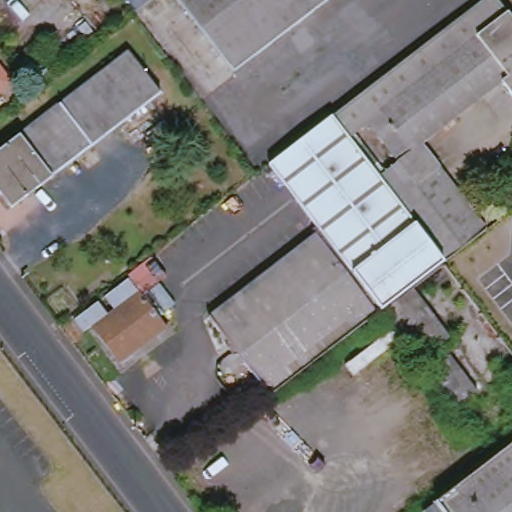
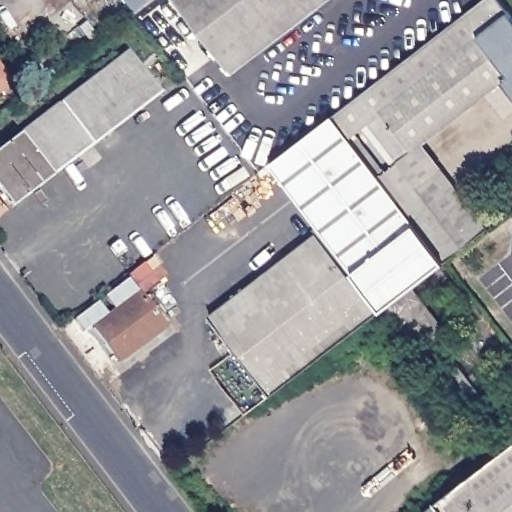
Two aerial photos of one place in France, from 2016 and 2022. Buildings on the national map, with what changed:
unchanged [(234,71),(179,0),(326,0),(234,71)]
unchanged [(332,114),(481,0),(499,0),(512,17),(512,94),(501,80),(397,159),(367,122),(350,136),(332,114)]
unchanged [(0,150),(130,50),(161,91),(12,206),(0,191),(0,150)]
unchanged [(0,96),(0,68),(14,86),(0,96)]
unchanged [(332,114),(350,136),(398,200),(445,261),(271,395),(210,316),(322,230),(270,163),(332,114)]
unchanged [(445,261),(398,200),(380,175),(422,144),(486,229),(445,261)]
unchanged [(451,337),(422,357),(406,337),(354,377),(344,365),(395,327),(382,309),(405,292),(412,287),(451,337)]
unchanged [(93,328),(140,293),(165,326),(119,361),(93,328)]
unchanged [(479,392),(464,404),(447,384),(443,386),(429,369),(450,354),(479,392)]
unchanged [(423,512),(512,443),(512,512),(423,512)]

